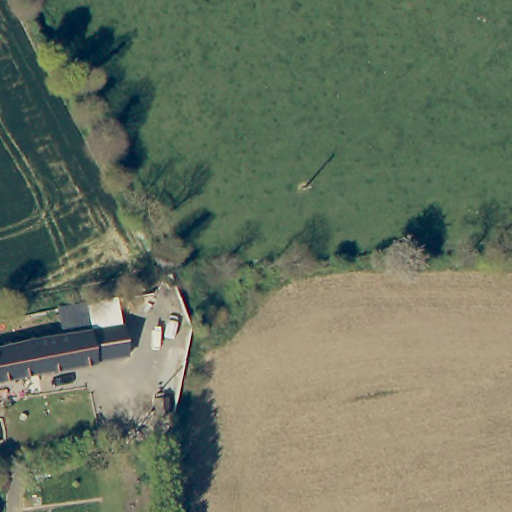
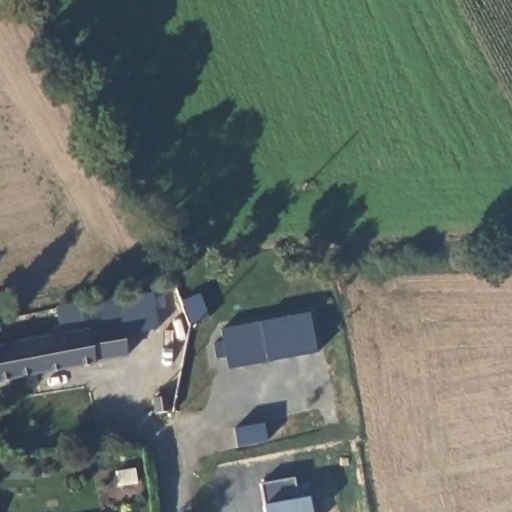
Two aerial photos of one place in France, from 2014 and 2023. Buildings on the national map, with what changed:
new [(317,354),(229,370),(226,357),(215,359),(212,344),(223,342),(221,331),(259,323),(309,314),(317,354)]
unchanged [(34,345),(110,330),(119,328),(126,357),(93,365),(94,367),(0,389),(0,351),(31,345),(34,345)]
new [(171,396),(172,409),(157,409),(157,397),(171,396)]
demolished [(168,431),(154,433),(153,399),(167,399),(168,431)]
new [(266,423),(269,440),(239,446),(236,429),(266,423)]
new [(262,507),(263,506),(260,484),(293,478),(297,500),(308,497),(311,512),(264,512),(262,507)]

